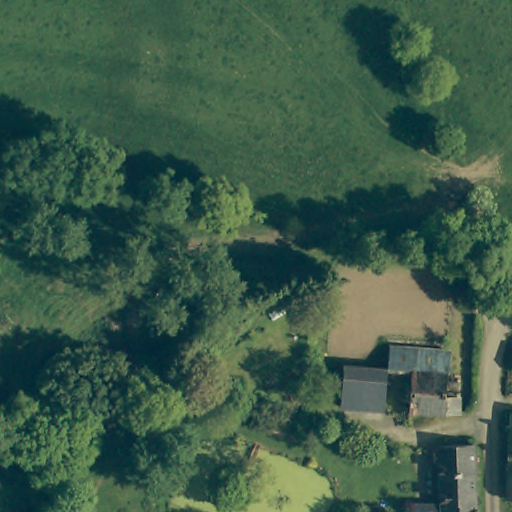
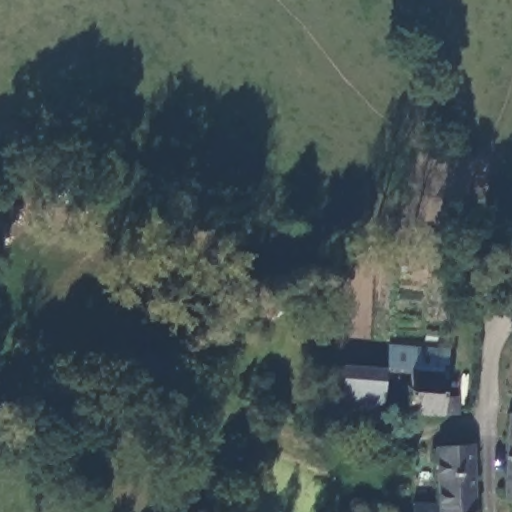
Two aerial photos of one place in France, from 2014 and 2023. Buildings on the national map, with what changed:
unchanged [(449,413),(415,411),(418,373),(392,371),(389,410),(343,408),(346,359),(392,362),(393,350),(421,353),(454,356),(452,377),(451,398),(463,398),(462,414),(449,413)]
unchanged [(508,416),(512,416),(512,499),(509,499),(503,499),(508,416)]
unchanged [(447,444),(478,444),(483,444),(482,512),(442,512),(443,444),(447,444)]

